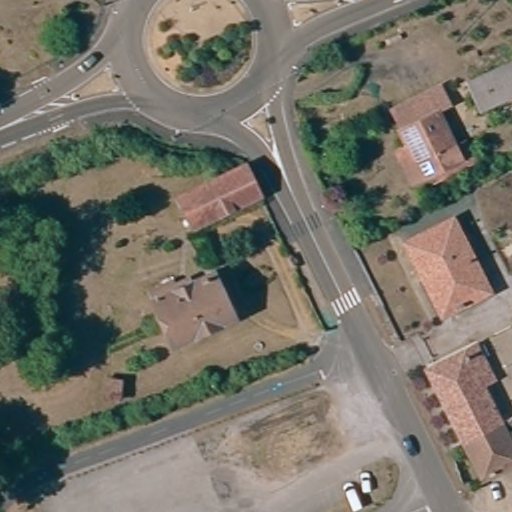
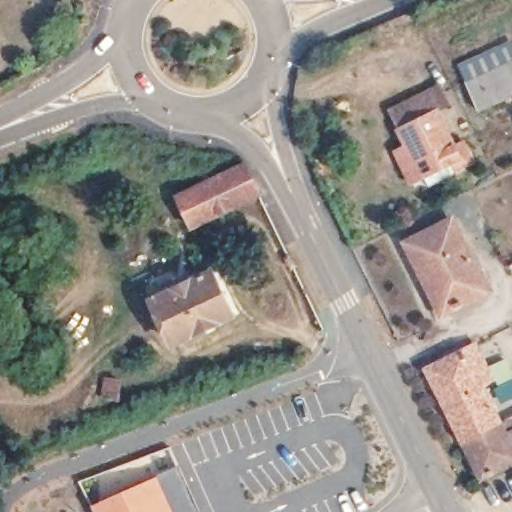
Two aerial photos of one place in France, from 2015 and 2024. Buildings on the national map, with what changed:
unchanged [(462,85),(503,65),(512,61),(512,72),(507,75),(512,85),(512,96),(476,114),(462,85)]
unchanged [(457,125),(445,130),(409,148),(399,130),(398,129),(447,105),(448,107),(457,125)]
unchanged [(440,191),(421,200),(405,170),(415,165),(409,148),(445,130),(462,165),(472,161),(481,179),(468,185),(444,198),(440,191)]
unchanged [(190,233),(176,205),(243,172),(256,199),(190,233)]
unchanged [(441,313),(423,275),(426,274),(409,239),(452,216),(480,272),(487,287),(480,290),(447,307),(448,309),(441,313)]
unchanged [(152,307),(164,299),(163,296),(168,294),(169,297),(211,276),(234,322),(174,352),(152,307)]
unchanged [(422,371),(472,347),(490,382),(480,388),(500,429),(462,449),(422,371)]
unchanged [(223,369),(236,363),(242,374),(226,380),(223,369)]
unchanged [(112,375),(127,376),(125,396),(110,394),(112,375)]
unchanged [(462,449),(500,429),(508,446),(512,444),(512,470),(481,487),(462,449)]
new [(159,476),(181,467),(201,512),(99,512),(96,506),(159,476)]

